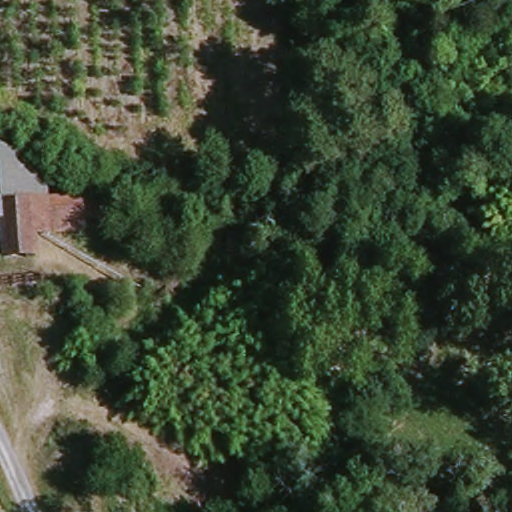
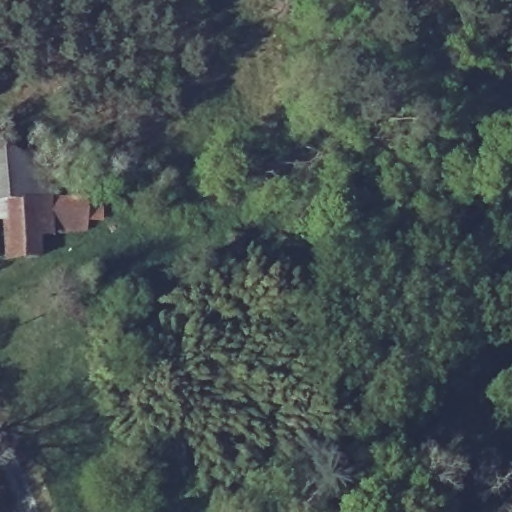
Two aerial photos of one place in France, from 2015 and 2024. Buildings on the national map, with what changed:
unchanged [(0,141),(20,155),(43,174),(43,197),(96,192),(96,214),(80,216),(79,225),(36,228),(35,251),(0,249),(0,141)]

